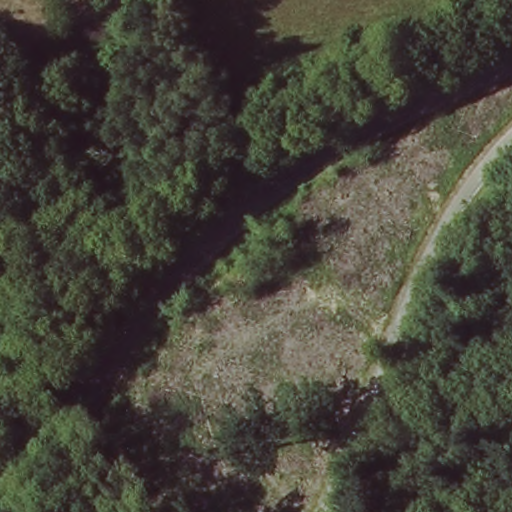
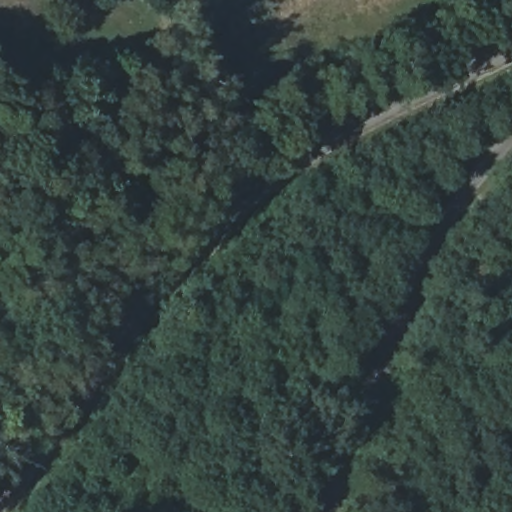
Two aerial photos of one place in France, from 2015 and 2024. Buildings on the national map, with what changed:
[]

